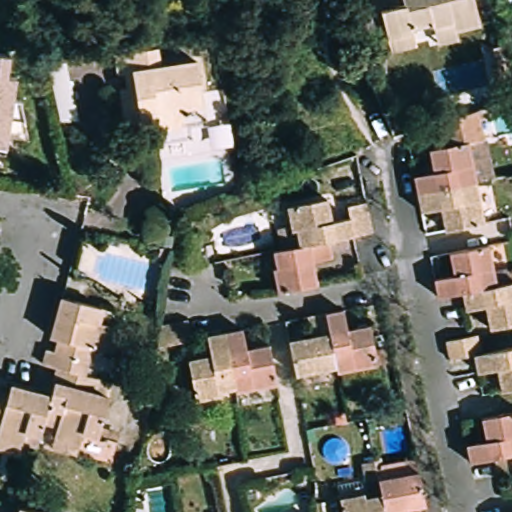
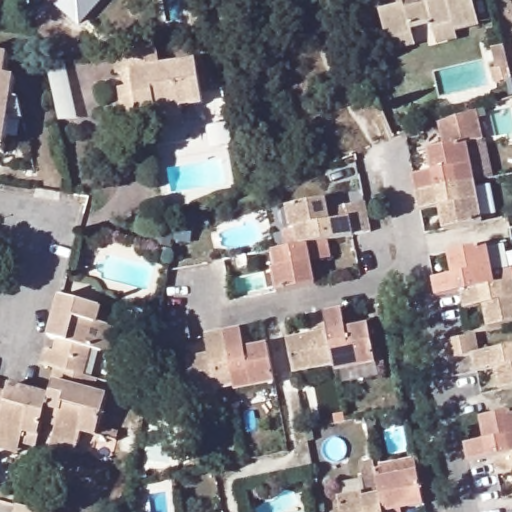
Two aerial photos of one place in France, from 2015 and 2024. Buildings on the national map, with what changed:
new [(49,0),(105,0),(81,28),(49,0)]
unchanged [(388,41),(381,12),(404,6),(402,0),(472,0),(479,24),(455,31),(458,39),(437,44),(435,36),(432,26),(411,31),(412,36),(415,46),(391,52),(388,41)]
unchanged [(159,124),(158,115),(126,119),(122,83),(128,83),(127,71),(119,71),(116,50),(155,45),(158,63),(198,58),(203,100),(182,103),(183,111),(184,121),(159,124)]
unchanged [(0,47),(12,49),(6,69),(19,71),(24,119),(8,121),(2,145),(0,144),(0,47)]
unchanged [(436,172),(441,166),(436,162),(433,150),(442,148),(437,125),(475,112),(480,140),(470,141),(479,183),(421,194),(416,177),(436,172)]
unchanged [(488,223),(449,231),(447,216),(450,211),(444,207),(424,212),(421,194),(479,183),(488,223)]
unchanged [(359,232),(341,236),(317,241),(290,246),(286,229),(283,230),(278,205),(315,198),(318,211),(314,218),(320,221),(340,217),(337,206),(354,202),(359,232)]
unchanged [(317,241),(321,258),(301,262),(297,267),(303,270),(306,285),(268,293),(263,269),(267,268),(264,252),(290,246),(317,241)]
unchanged [(495,286),(461,294),(436,298),(432,280),(453,275),(455,270),(451,264),(449,253),(486,246),(495,286)]
unchanged [(512,283),(512,325),(488,330),(486,317),(490,312),(483,307),(464,311),(461,294),(495,286),(512,283)]
unchanged [(50,338),(62,297),(100,308),(97,324),(107,326),(117,329),(110,355),(101,351),(90,349),(82,376),(58,369),(44,366),(47,351),(54,353),(57,340),(50,338)]
unchanged [(340,368),(329,314),(347,310),(350,330),(358,333),(361,329),(375,327),(383,364),(340,372),(340,368)]
unchanged [(293,343),(308,339),(311,343),(315,339),(312,317),(329,314),(340,368),(300,376),(293,343)]
unchanged [(187,322),(191,340),(165,345),(163,327),(187,322)]
unchanged [(224,339),(243,335),(245,354),(251,359),(254,354),(268,351),(275,389),(235,396),(235,394),(224,339)]
unchanged [(511,393),(508,378),(510,374),(506,370),(487,374),(483,356),(458,360),(454,341),(478,337),(486,336),(489,354),(512,349),(512,392),(511,393)]
unchanged [(224,339),(235,394),(218,397),(218,400),(196,404),(188,366),(204,363),(208,366),(211,361),(208,342),(224,339)]
unchanged [(51,447),(53,437),(56,425),(42,421),(50,397),(58,369),(82,376),(110,384),(96,436),(82,432),(79,445),(77,453),(51,447)]
unchanged [(0,390),(8,392),(10,385),(50,397),(42,421),(38,436),(23,432),(22,443),(19,453),(0,448),(0,390)]
unchanged [(494,453),(469,458),(466,441),(485,436),(489,431),(484,426),(482,413),(512,407),(512,449),(494,453)]
unchanged [(497,471),(494,453),(512,449),(512,469),(497,471)]
unchanged [(380,500),(377,485),(418,477),(424,511),(413,512),(409,512),(405,510),(403,512),(382,512),(380,500)]
unchanged [(338,505),(360,501),(361,503),(380,500),(382,512),(339,512),(338,505)]

